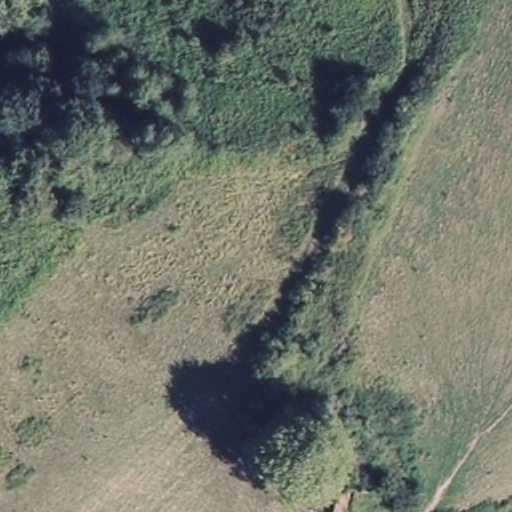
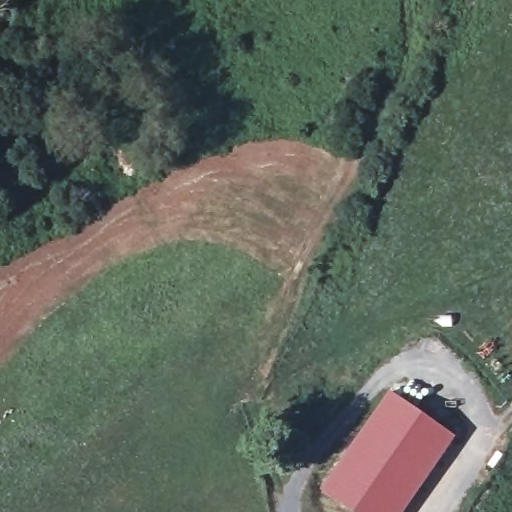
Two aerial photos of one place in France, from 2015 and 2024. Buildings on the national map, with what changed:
new [(456,437),(403,512),(353,512),(319,488),(390,389),(456,437)]
demolished [(328,468),(388,476),(379,512),(350,512),(327,507),(328,468)]

